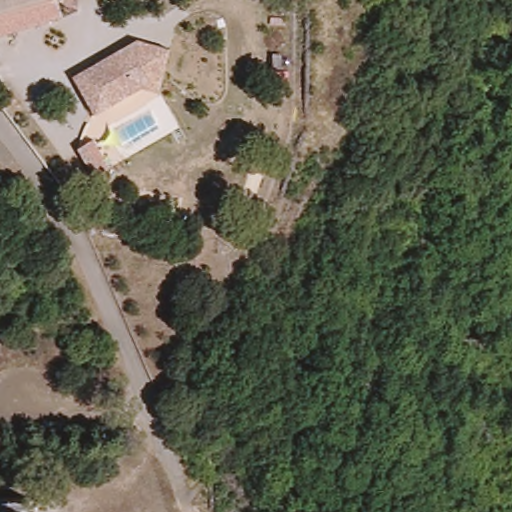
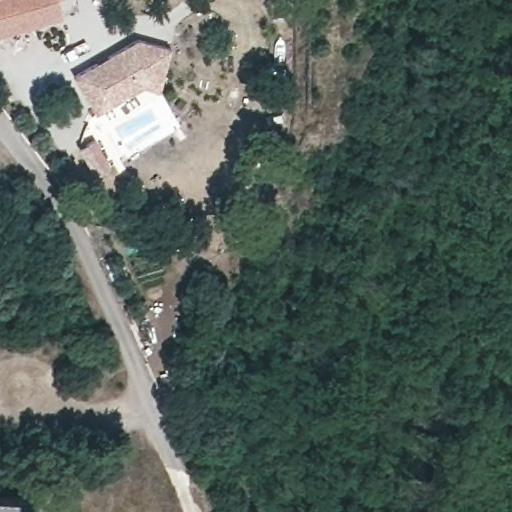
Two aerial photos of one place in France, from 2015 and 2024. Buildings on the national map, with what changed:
unchanged [(69,0),(58,2),(63,20),(0,35),(0,0),(69,0)]
unchanged [(90,102),(75,73),(142,42),(175,53),(160,95),(144,89),(109,106),(96,113),(90,102)]
unchanged [(108,168),(93,176),(79,146),(94,139),(108,168)]
unchanged [(42,501),(42,512),(0,512),(0,490),(32,491),(33,500),(42,501)]

